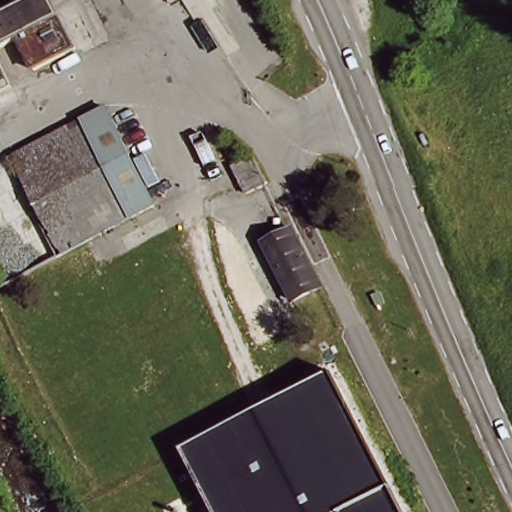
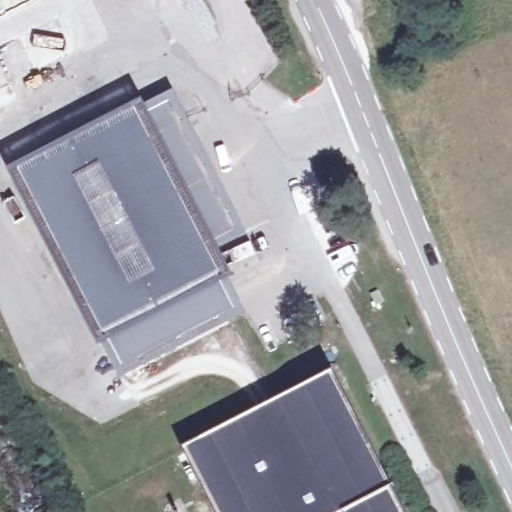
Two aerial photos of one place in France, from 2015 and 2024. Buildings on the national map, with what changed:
unchanged [(0,8),(0,0),(40,0),(53,0),(78,49),(35,71),(20,41),(0,51),(0,19),(5,17),(0,8)]
unchanged [(0,19),(0,8),(5,17),(0,19)]
new [(22,179),(170,103),(237,235),(205,251),(90,310),(22,179)]
demolished [(108,109),(157,208),(135,219),(85,120),(108,109)]
demolished [(255,155),(268,182),(248,192),(235,163),(255,155)]
demolished [(299,236),(305,249),(302,251),(325,296),(300,308),(271,251),(299,236)]
new [(90,310),(205,251),(216,274),(102,333),(90,310)]
new [(216,274),(236,314),(122,372),(102,333),(216,274)]
unchanged [(406,512),(218,512),(187,450),(333,374),(406,512)]

